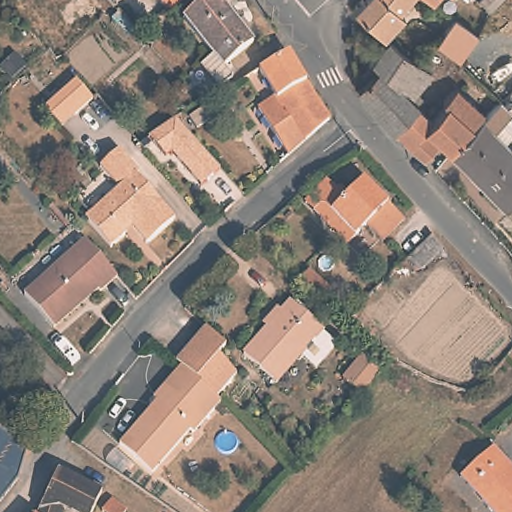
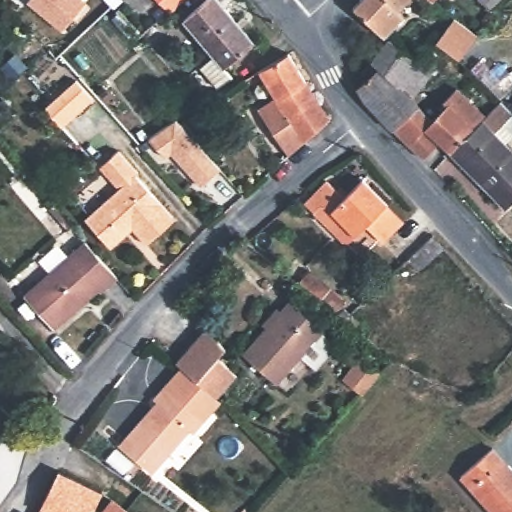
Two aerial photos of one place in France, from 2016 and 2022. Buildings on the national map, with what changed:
new [(29,1),(30,0),(88,0),(65,29),(29,1)]
unchanged [(182,0),(167,12),(158,0),(182,0)]
unchanged [(231,77),(216,87),(202,69),(215,58),(184,19),(209,0),(217,0),(253,42),(224,68),(231,77)]
unchanged [(383,34),(381,36),(348,5),(354,0),(402,0),(394,8),(401,14),(383,34)]
unchanged [(477,0),(498,0),(488,9),(477,0)]
unchanged [(447,33),(458,42),(466,33),(472,38),(457,58),(439,44),(447,33)]
unchanged [(453,85),(483,115),(449,151),(439,141),(420,159),(406,148),(389,131),(352,90),(352,86),(369,70),(363,65),(369,58),(378,47),(386,37),(410,57),(417,63),(421,58),(428,64),(424,69),(427,72),(413,87),(420,95),(413,103),(415,104),(425,113),(453,85)]
unchanged [(286,49),(328,116),(288,153),(258,106),(277,93),(260,66),(286,49)]
unchanged [(51,109),(79,82),(96,100),(69,127),(51,109)]
unchanged [(449,151),(483,115),(498,100),(510,113),(500,123),(510,134),(503,141),(512,150),(512,195),(501,205),(449,151)]
unchanged [(222,165),(192,132),(190,133),(186,136),(174,123),(178,120),(201,105),(240,148),(222,165)]
unchanged [(89,224),(88,218),(90,212),(116,187),(100,168),(119,151),(135,169),(131,173),(170,216),(145,240),(130,226),(109,246),(92,227),(89,224)]
unchanged [(166,161),(176,153),(201,180),(191,190),(166,161)]
unchanged [(325,179),(333,188),(339,183),(347,191),(362,177),(383,200),(382,200),(398,216),(375,238),(360,221),(340,240),(302,201),(325,179)]
unchanged [(431,231),(442,244),(413,270),(400,259),(431,231)]
unchanged [(99,284),(56,323),(29,294),(87,238),(119,273),(104,288),(99,284)]
unchanged [(311,267),(344,295),(335,306),(300,279),(311,267)]
unchanged [(289,301),(321,330),(275,382),(243,353),(289,301)]
unchanged [(360,395),(343,378),(363,356),(381,371),(360,395)]
unchanged [(151,410),(148,407),(158,396),(174,378),(178,381),(208,410),(212,413),(197,430),(187,442),(184,439),(144,481),(112,453),(151,410)]
unchanged [(512,469),(512,512),(492,512),(460,474),(492,446),(512,469)]
unchanged [(60,474),(65,476),(70,474),(73,470),(73,468),(92,480),(89,486),(100,494),(90,512),(39,512),(60,474)]
unchanged [(10,487),(0,503),(0,479),(10,487)]
unchanged [(133,503),(126,512),(122,512),(109,504),(117,492),(133,503)]

